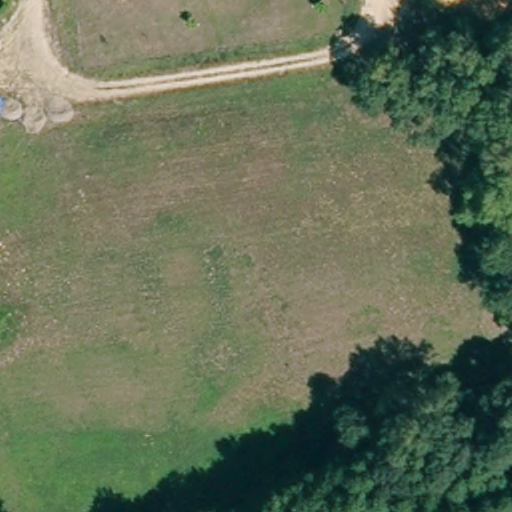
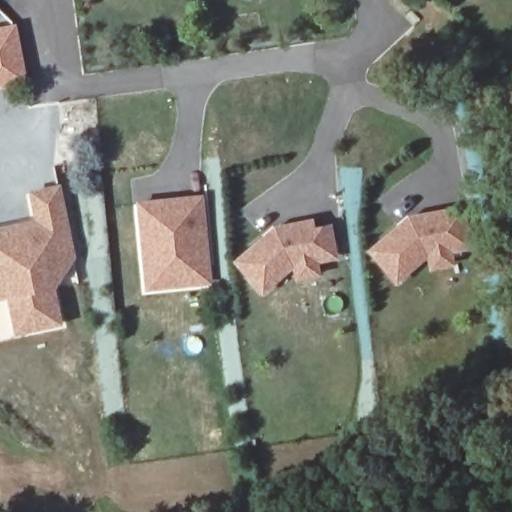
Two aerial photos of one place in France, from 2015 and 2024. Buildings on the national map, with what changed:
new [(28,82),(0,88),(0,26),(15,23),(28,82)]
new [(76,260),(56,290),(64,326),(14,335),(7,299),(0,300),(0,226),(33,219),(28,191),(60,185),(76,260)]
new [(204,193),(212,284),(145,290),(136,201),(204,193)]
new [(433,268),(431,255),(428,256),(398,282),(373,252),(400,229),(411,220),(447,212),(449,221),(465,219),(471,247),(451,251),(454,265),(433,268)]
new [(296,277),(294,265),(291,265),(262,291),(236,262),(263,238),(273,229),(310,221),(312,230),(328,227),(333,256),(314,260),(316,273),(296,277)]

